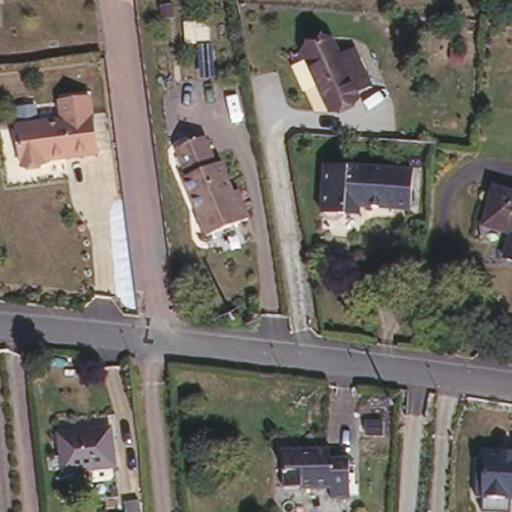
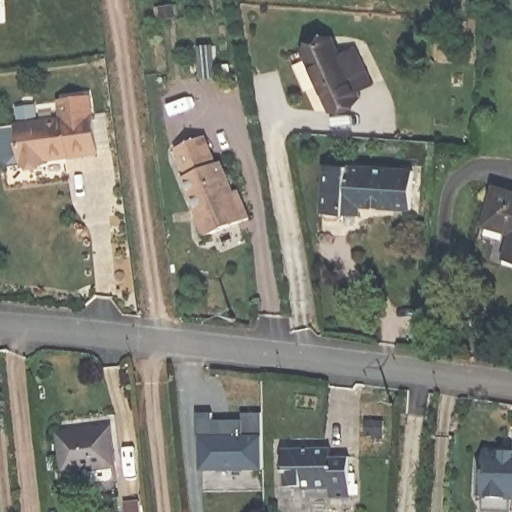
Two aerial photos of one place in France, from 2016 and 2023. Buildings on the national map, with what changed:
unchanged [(325,99),(303,50),(331,39),(340,57),(355,50),(371,87),(356,94),(360,100),(338,109),(331,112),(325,99)]
unchanged [(67,115),(65,97),(96,94),(103,150),(50,158),(50,160),(27,163),(22,121),(67,115)]
unchanged [(210,128),(222,155),(226,154),(239,184),(244,182),(255,209),(214,227),(210,224),(204,211),(205,205),(190,169),(195,167),(182,139),(210,128)]
unchanged [(350,223),(343,228),(332,227),(326,219),(329,173),(416,179),(414,216),(366,213),(365,223),(350,223)]
unchanged [(488,223),(499,183),(512,186),(512,229),(488,223)]
unchanged [(509,253),(512,244),(512,254),(509,253)]
new [(263,471),(200,471),(199,414),(212,414),(211,420),(245,421),(245,414),(262,413),(263,471)]
unchanged [(116,424),(120,463),(68,469),(64,431),(116,424)]
unchanged [(340,439),(340,448),(360,449),(360,489),(340,489),(340,481),(312,481),(312,478),(294,479),(292,439),(340,439)]
unchanged [(482,497),(476,497),(476,462),(482,462),(483,449),(512,449),(512,501),(510,501),(510,512),(496,512),(482,511),(482,497)]
unchanged [(140,503),(141,512),(125,512),(125,504),(140,503)]

